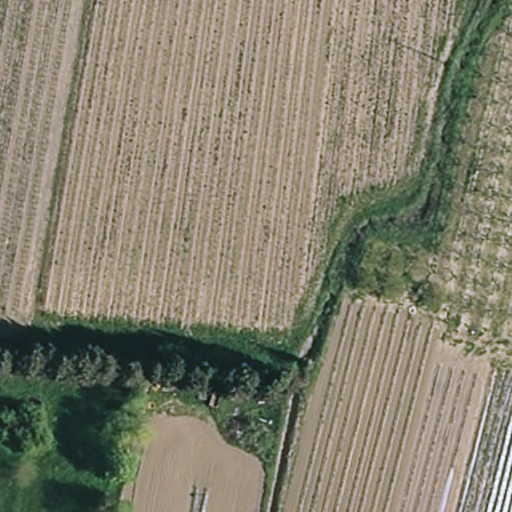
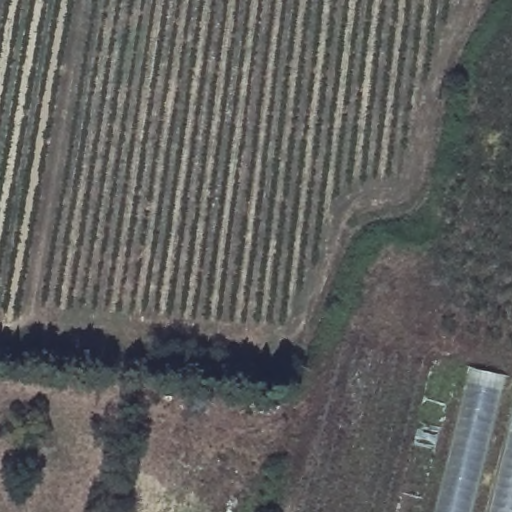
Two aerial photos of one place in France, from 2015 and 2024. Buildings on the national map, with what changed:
new [(473,365),(512,374),(512,512),(437,512),(473,365)]

